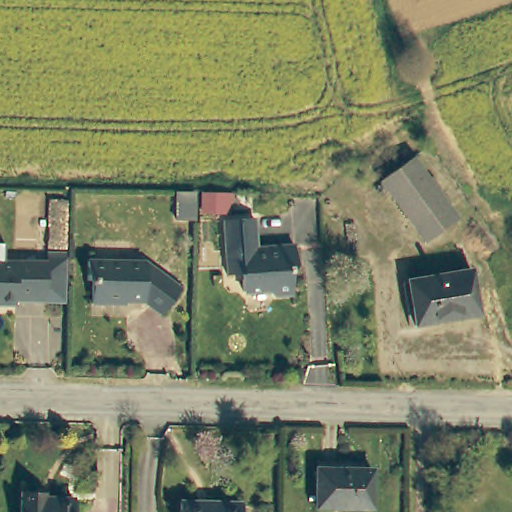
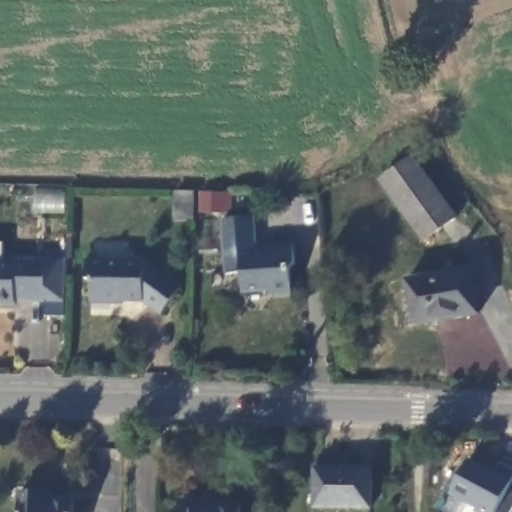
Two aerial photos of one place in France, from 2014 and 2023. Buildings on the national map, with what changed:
unchanged [(380,181),(412,157),(457,219),(424,242),(380,181)]
unchanged [(251,220),(253,250),(259,254),(271,254),(275,247),(290,246),(293,268),(289,270),(290,295),(270,296),(264,291),(241,292),(240,275),(224,275),(219,220),(251,220)]
unchanged [(0,261),(0,243),(1,243),(0,261)]
unchanged [(43,255),(63,255),(62,268),(62,298),(61,302),(11,301),(11,306),(0,305),(0,261),(43,262),(43,255)]
unchanged [(141,261),(178,289),(160,317),(140,302),(110,301),(110,305),(90,305),(90,282),(83,280),(84,261),(141,261)]
unchanged [(479,315),(414,326),(406,281),(471,270),(479,315)]
new [(497,512),(476,512),(477,511),(451,496),(470,458),(498,474),(502,464),(512,469),(512,484),(497,512)]
unchanged [(315,468),(371,469),(370,508),(314,507),(315,468)]
unchanged [(19,492),(42,492),(42,498),(71,498),(71,512),(19,512),(19,492)]
unchanged [(179,501),(239,503),(239,512),(179,512),(179,501)]

